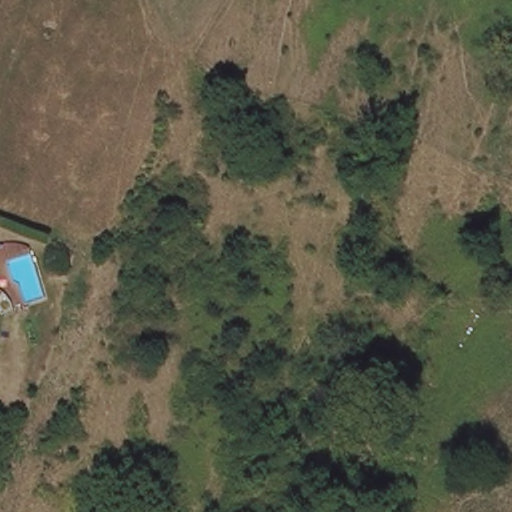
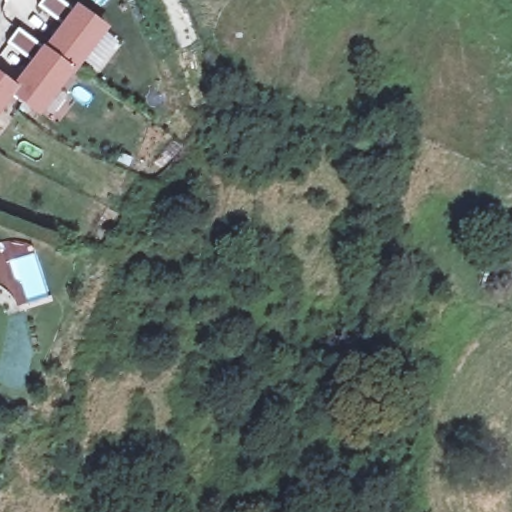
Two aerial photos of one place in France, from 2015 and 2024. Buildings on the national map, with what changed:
new [(55,0),(73,13),(76,9),(103,28),(72,71),(70,70),(45,53),(62,28),(36,9),(42,0),(55,0)]
new [(17,31),(45,53),(70,70),(42,109),(14,90),(32,66),(6,46),(17,31)]
new [(14,90),(0,109),(0,80),(14,90)]

